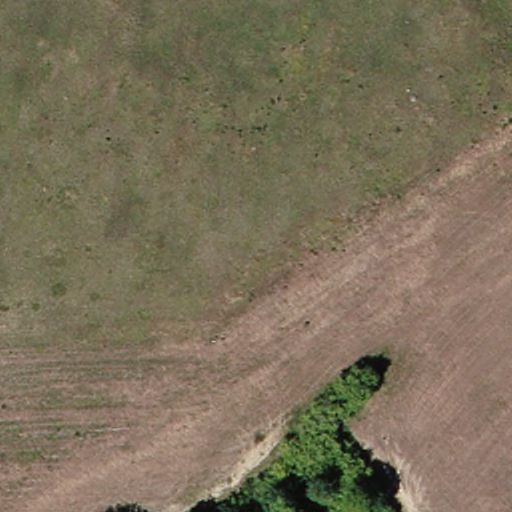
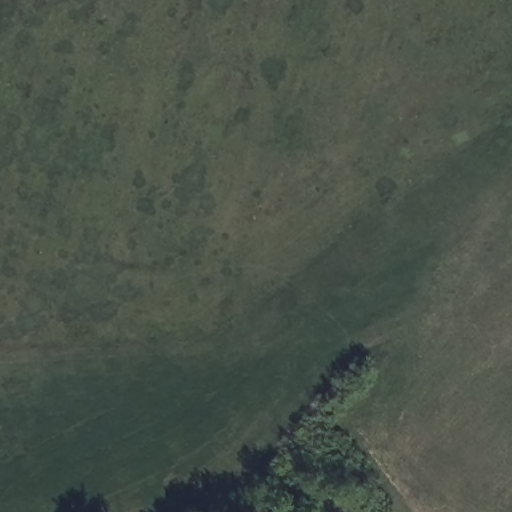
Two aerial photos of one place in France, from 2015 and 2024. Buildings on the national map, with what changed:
[]

